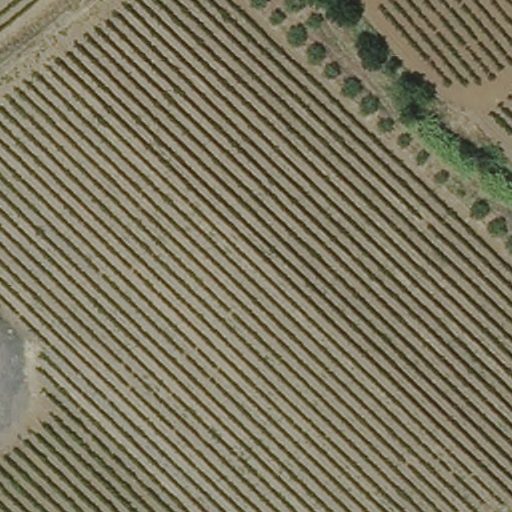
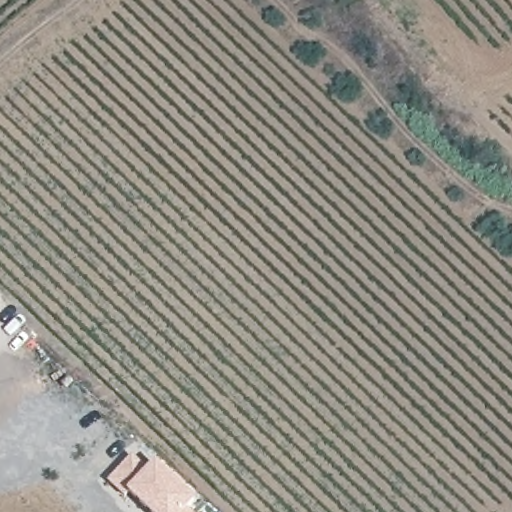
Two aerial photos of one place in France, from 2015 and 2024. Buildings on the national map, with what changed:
new [(148,469),(154,463),(196,501),(188,510),(190,512),(145,512),(126,493),(123,496),(107,482),(131,455),(148,469)]

